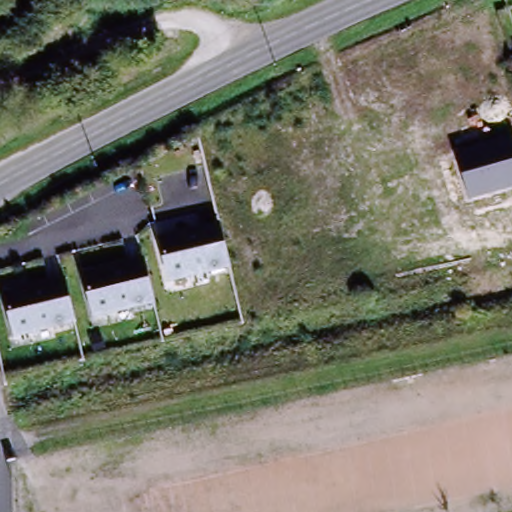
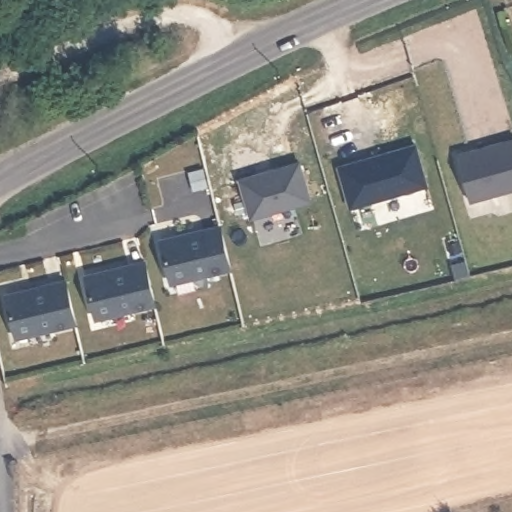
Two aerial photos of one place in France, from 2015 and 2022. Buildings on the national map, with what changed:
unchanged [(512,191),(470,201),(460,151),(512,137),(512,191)]
new [(346,167),(417,145),(429,186),(350,207),(341,174),(346,167)]
new [(300,160),(313,202),(251,219),(239,177),(300,160)]
unchanged [(156,238),(219,220),(231,265),(172,282),(156,238)]
unchanged [(85,275),(145,260),(160,301),(99,316),(85,275)]
unchanged [(5,293),(66,277),(80,322),(17,336),(5,293)]

